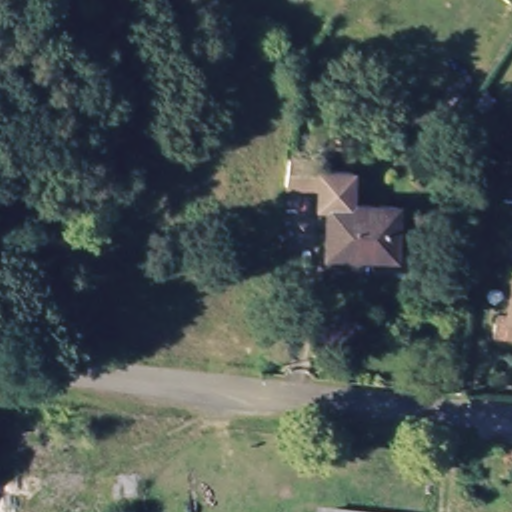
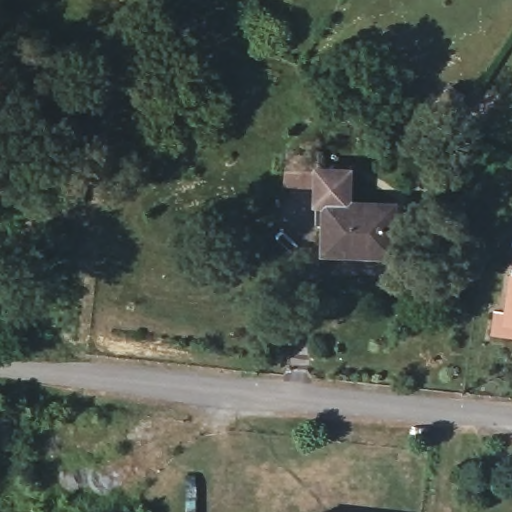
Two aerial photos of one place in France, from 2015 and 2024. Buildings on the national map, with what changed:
unchanged [(355,215),(401,218),(397,268),(328,263),(332,215),(323,215),(324,194),(291,193),(295,167),(326,168),(325,179),(358,183),(355,215)]
unchanged [(491,340),(495,307),(512,309),(512,344),(491,340)]

